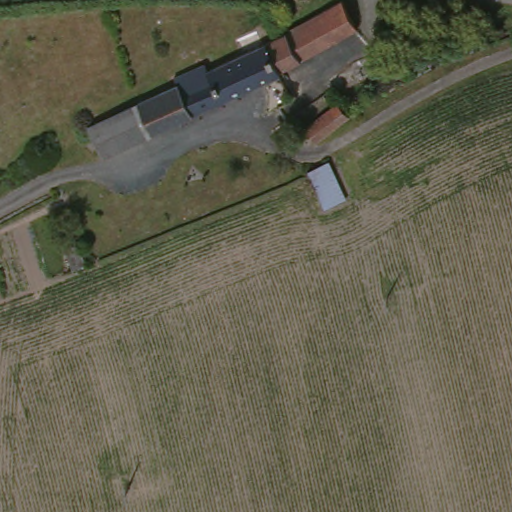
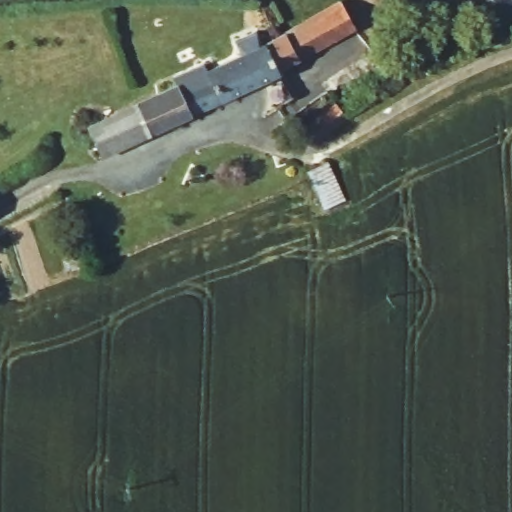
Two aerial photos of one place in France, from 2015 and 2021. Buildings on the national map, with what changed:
unchanged [(139,103),(151,96),(204,66),(208,71),(273,39),(336,7),(351,33),(274,73),(276,76),(153,134),(151,131),(139,103)]
unchanged [(139,103),(151,131),(99,153),(88,125),(139,103)]
unchanged [(347,120),(321,141),(315,146),(304,132),(334,106),(347,120)]
unchanged [(331,160),(349,199),(328,210),(308,170),(331,160)]
unchanged [(90,264),(79,235),(92,230),(102,259),(90,264)]

